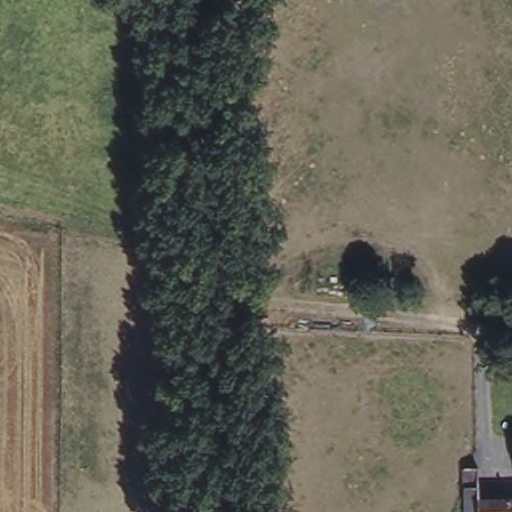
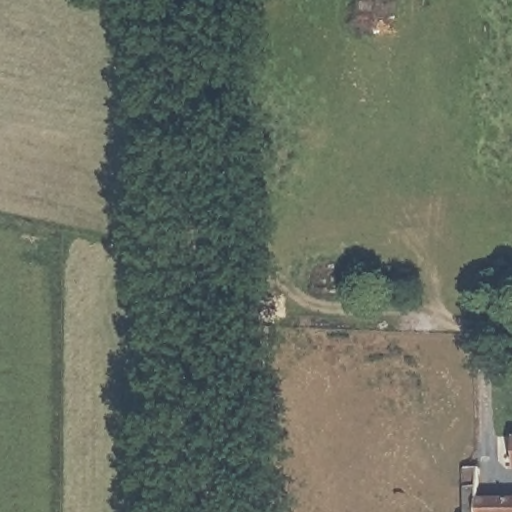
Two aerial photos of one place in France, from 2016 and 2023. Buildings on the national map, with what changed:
unchanged [(512,442),(512,473),(509,474),(509,442),(512,442)]
unchanged [(483,499),(512,498),(512,512),(469,512),(468,487),(468,467),(482,467),(482,484),(482,487),(482,499),(483,499)]

